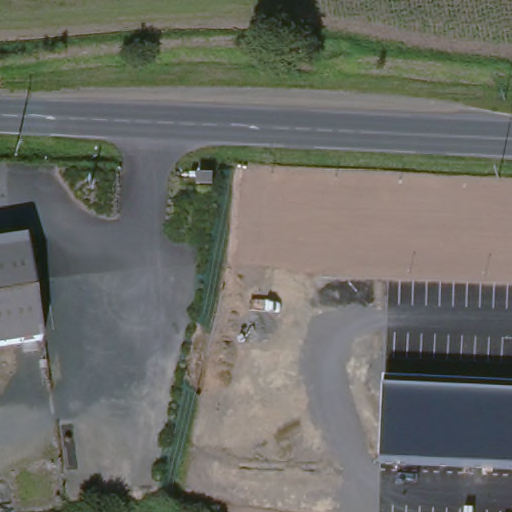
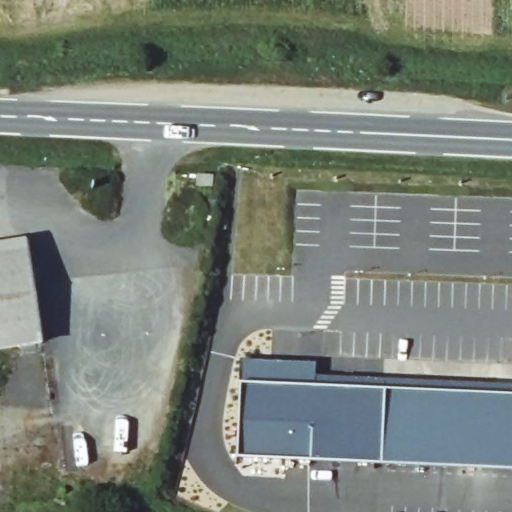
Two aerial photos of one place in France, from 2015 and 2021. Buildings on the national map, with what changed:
unchanged [(215,179),(214,189),(200,188),(201,177),(215,179)]
unchanged [(39,341),(0,347),(0,244),(25,241),(39,341)]
new [(236,457),(239,382),(239,358),(312,361),(312,375),(384,378),(384,390),(380,461),(236,457)]
unchanged [(512,386),(512,468),(380,461),(384,390),(384,378),(512,386)]

